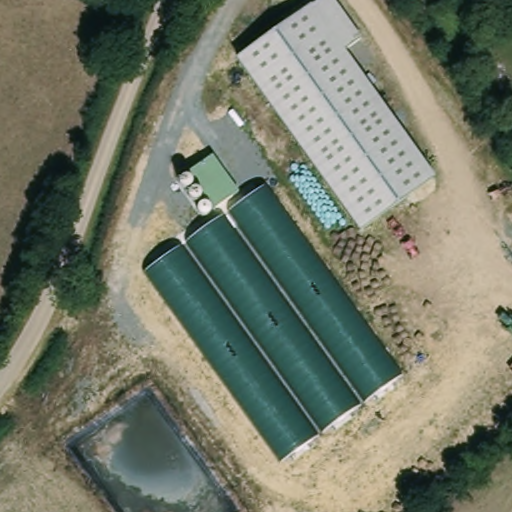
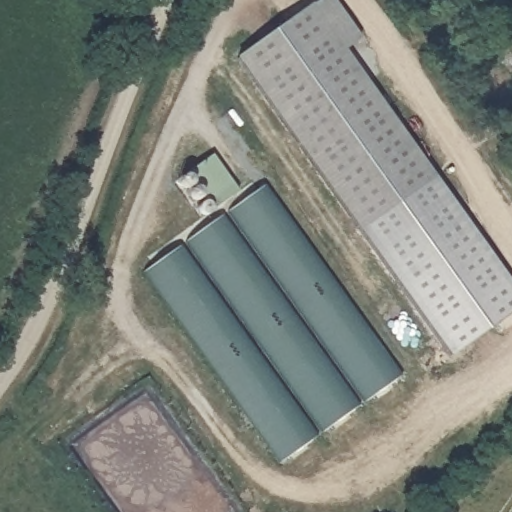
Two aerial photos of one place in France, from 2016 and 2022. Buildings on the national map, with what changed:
unchanged [(343,50),(435,178),(360,231),(235,60),(309,8),(319,0),(333,0),(360,36),(343,50)]
unchanged [(239,192),(211,211),(185,174),(213,156),(239,192)]
new [(512,313),(450,356),(360,231),(435,178),(512,284),(512,313)]
unchanged [(146,271),(265,187),(399,375),(281,459),(146,271)]

